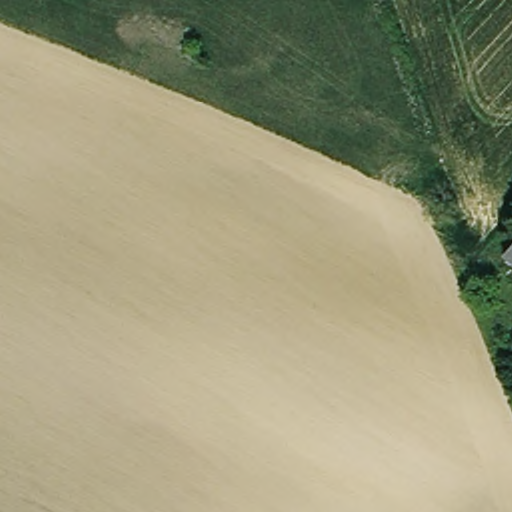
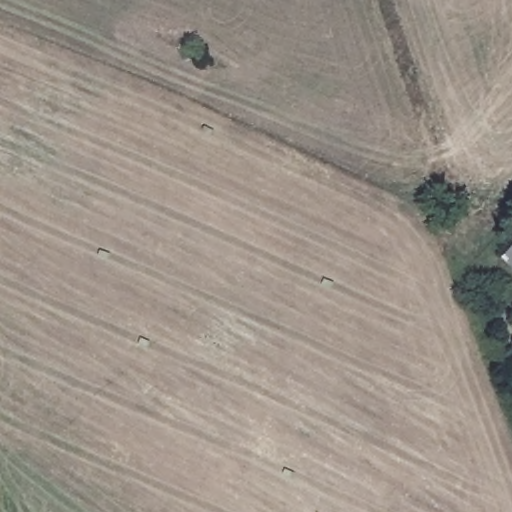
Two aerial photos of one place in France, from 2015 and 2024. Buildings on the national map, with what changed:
unchanged [(512,261),(508,257),(512,253),(512,261)]

